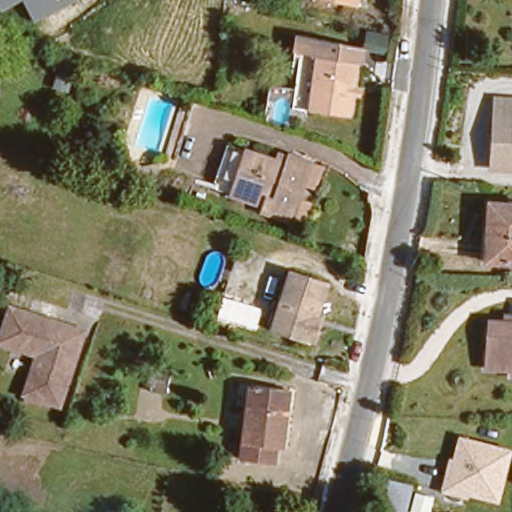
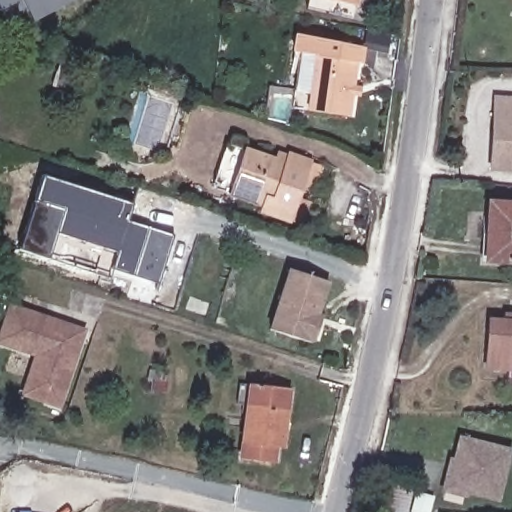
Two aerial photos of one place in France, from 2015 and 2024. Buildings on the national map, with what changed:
unchanged [(3,11),(0,4),(0,0),(23,0),(3,11)]
unchanged [(33,22),(24,0),(77,0),(33,22)]
unchanged [(353,5),(329,0),(354,0),(353,5)]
unchanged [(292,53),(293,35),(361,40),(360,56),(355,55),(351,106),(293,102),(297,53),(292,53)]
unchanged [(512,101),(512,169),(488,168),(490,99),(512,101)]
unchanged [(292,222),(275,217),(244,207),(247,196),(220,188),(201,176),(213,142),(258,156),(269,160),(272,148),(296,155),(311,161),(304,182),(289,176),(283,194),(299,198),(292,222)]
new [(132,204),(127,220),(174,235),(158,284),(111,269),(117,253),(54,232),(46,259),(18,250),(42,175),(132,204)]
unchanged [(480,198),(512,200),(512,265),(478,262),(480,198)]
unchanged [(326,285),(313,326),(321,329),(316,343),(308,340),(307,345),(270,331),(291,274),(326,285)]
unchanged [(82,328),(59,406),(21,395),(34,356),(0,345),(0,322),(5,305),(82,328)]
unchanged [(506,372),(483,370),(486,324),(512,325),(512,362),(506,362),(506,372)]
unchanged [(512,380),(505,380),(507,374),(508,363),(512,363),(512,380)]
unchanged [(287,390),(280,447),(272,445),(268,465),(237,460),(246,385),(287,390)]
unchanged [(469,495),(467,498),(439,491),(448,457),(452,458),(457,435),(512,449),(512,451),(499,502),(469,495)]

